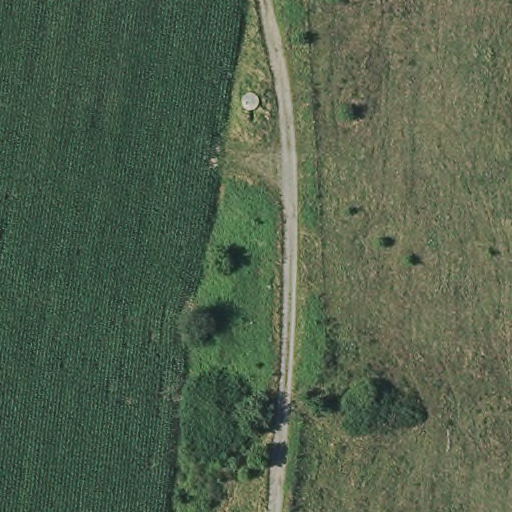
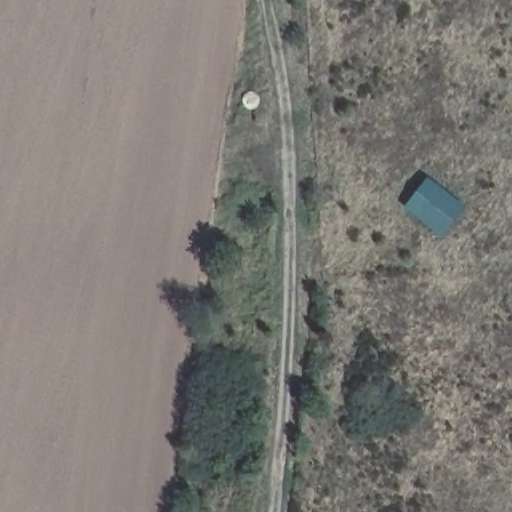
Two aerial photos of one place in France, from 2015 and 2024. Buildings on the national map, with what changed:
unchanged [(249,110),(247,110),(246,110),(243,109),(242,108),(241,107),(239,106),(238,104),(238,102),(238,100),(238,98),(239,96),(241,95),(242,94),(243,93),(245,92),(247,92),(249,92),(251,92),(252,93),(253,94),(255,96),(256,97),(256,99),(256,101),(256,103),(256,104),(255,106),(254,107),(253,109),(251,110),(249,110)]
new [(404,207),(406,204),(410,207),(432,180),(466,207),(442,238),(404,207)]

